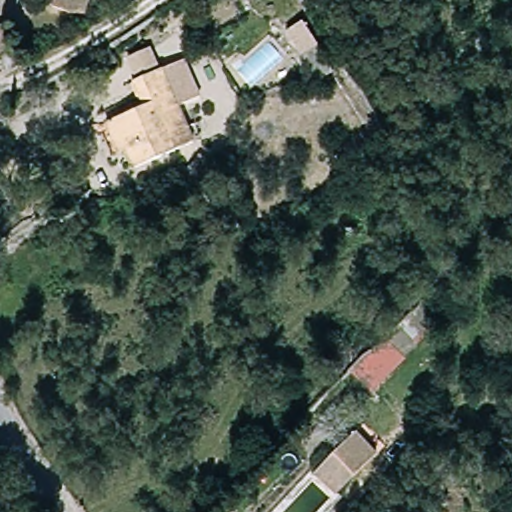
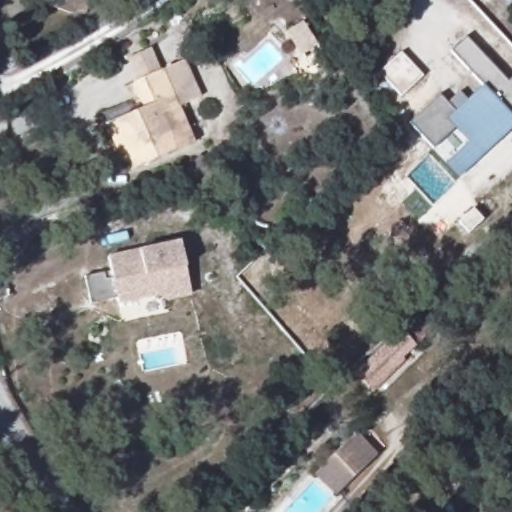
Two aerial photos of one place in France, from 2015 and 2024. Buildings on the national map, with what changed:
unchanged [(66,7),(67,0),(99,0),(97,9),(80,10),(66,7)]
unchanged [(292,32),(307,23),(338,75),(323,84),(292,32)]
new [(450,51),(465,37),(507,82),(511,79),(512,80),(512,127),(458,178),(445,164),(467,142),(455,128),(433,148),(410,124),(439,96),(446,103),(449,100),(455,106),(447,99),(459,88),(465,96),(467,97),(480,84),(450,51)]
unchanged [(115,151),(103,122),(139,106),(130,80),(132,79),(125,58),(150,47),(159,68),(172,64),(184,59),(200,95),(178,106),(182,115),(193,141),(133,166),(126,152),(117,154),(115,151)]
new [(401,50),(423,74),(401,94),(379,70),(401,50)]
unchanged [(208,189),(192,175),(206,159),(222,173),(208,189)]
new [(104,270),(106,277),(112,275),(108,255),(179,238),(191,290),(167,296),(159,291),(118,301),(117,296),(90,302),(84,274),(104,270)]
unchanged [(440,325),(405,357),(407,361),(374,394),(353,373),(422,308),(440,325)]
unchanged [(312,477),(355,434),(375,455),(334,497),(312,477)]

